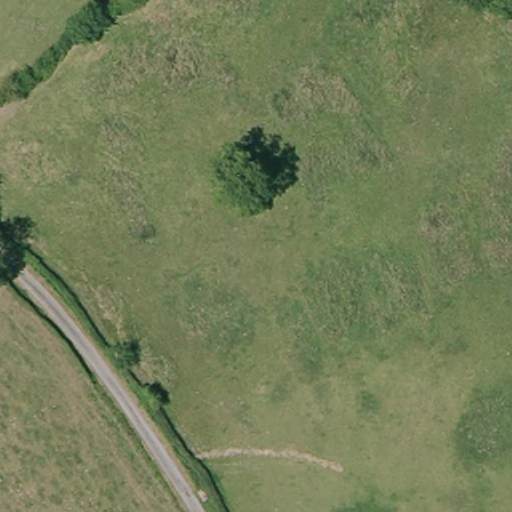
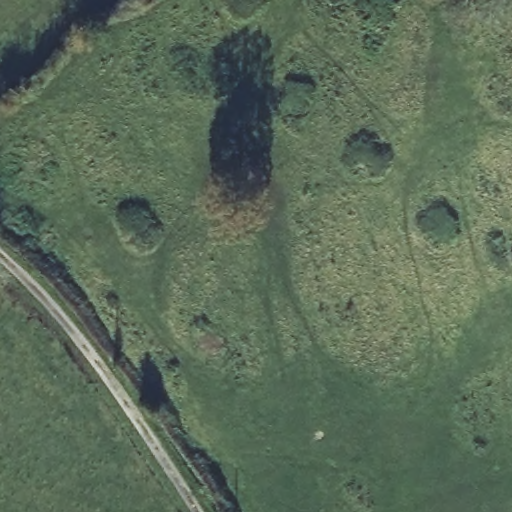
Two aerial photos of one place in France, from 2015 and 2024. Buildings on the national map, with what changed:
[]

